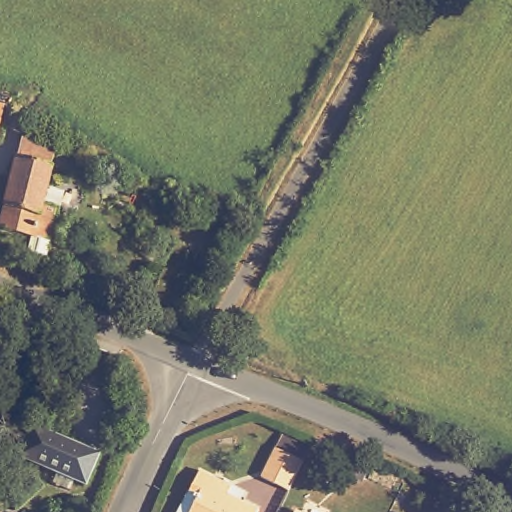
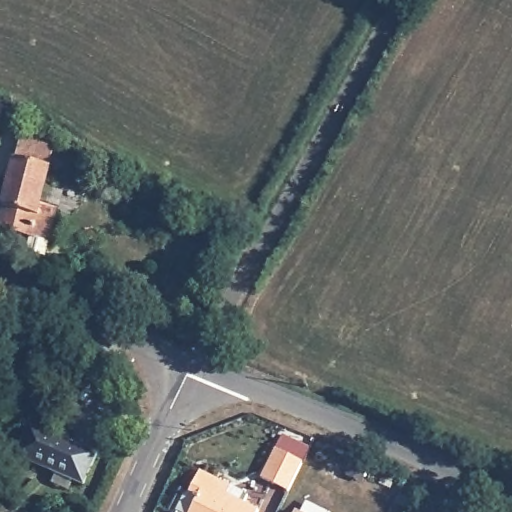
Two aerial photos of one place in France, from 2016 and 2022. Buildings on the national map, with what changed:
unchanged [(4,106),(0,124),(0,106),(4,106)]
unchanged [(49,167),(40,203),(58,208),(51,234),(45,257),(26,253),(30,238),(0,231),(0,220),(14,159),(49,167)]
unchanged [(101,453),(89,483),(21,457),(34,426),(101,453)]
unchanged [(269,469),(283,441),(311,454),(298,482),(297,483),(269,469)]
unchanged [(192,496),(194,493),(187,490),(198,468),(229,483),(221,499),(233,505),(237,498),(257,508),(255,512),(188,512),(196,497),(192,496)]

